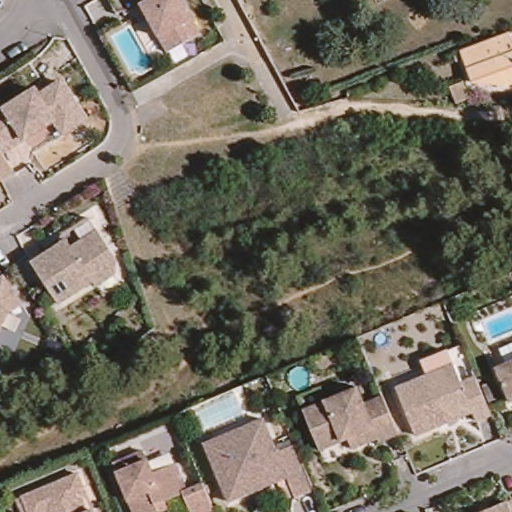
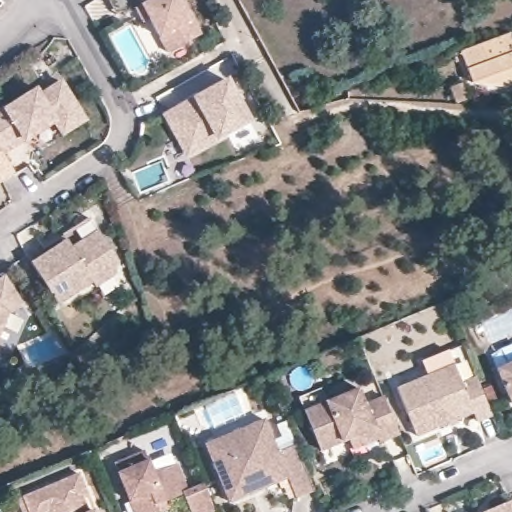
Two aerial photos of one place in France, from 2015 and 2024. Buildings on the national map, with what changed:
unchanged [(165,32),(161,27),(146,37),(130,9),(144,0),(188,0),(205,27),(188,38),(173,47),(165,32)]
unchanged [(463,47),(507,31),(512,45),(512,80),(503,84),(481,92),(476,80),(463,47)]
new [(162,114),(227,78),(251,122),(187,158),(162,114)]
unchanged [(305,78),(310,87),(300,92),(295,82),(305,78)]
unchanged [(0,143),(0,114),(9,108),(10,109),(40,89),(43,95),(65,81),(89,118),(67,133),(58,120),(29,140),(28,139),(6,153),(0,143)]
unchanged [(6,153),(20,173),(0,186),(0,143),(6,153)]
unchanged [(97,280),(98,279),(63,302),(36,261),(63,243),(71,238),(77,246),(102,229),(121,257),(119,273),(100,285),(97,280)]
unchanged [(5,312),(2,359),(6,370),(0,372),(0,277),(17,303),(5,312)]
unchanged [(482,420),(478,411),(421,435),(401,388),(432,375),(426,361),(453,350),(458,364),(466,382),(480,376),(496,414),(482,420)]
unchanged [(512,363),(512,392),(501,368),(512,363)]
unchanged [(321,448),(305,409),(300,395),(321,386),(327,399),(358,386),(365,402),(383,394),(398,431),(380,439),(378,434),(353,445),(350,436),(321,448)]
unchanged [(225,485),(206,441),(265,416),(279,448),(296,441),(316,487),(297,494),(289,474),(264,484),(231,499),(225,485)]
unchanged [(143,512),(120,459),(150,446),(160,468),(181,459),(193,486),(210,479),(220,505),(204,512),(199,512),(195,503),(177,510),(175,503),(165,507),(152,512),(143,512)]
unchanged [(82,473),(88,486),(91,495),(87,497),(93,512),(97,510),(99,512),(50,512),(27,512),(21,498),(82,473)]
unchanged [(493,506),(512,498),(512,512),(478,512),(485,509),(493,506)]

